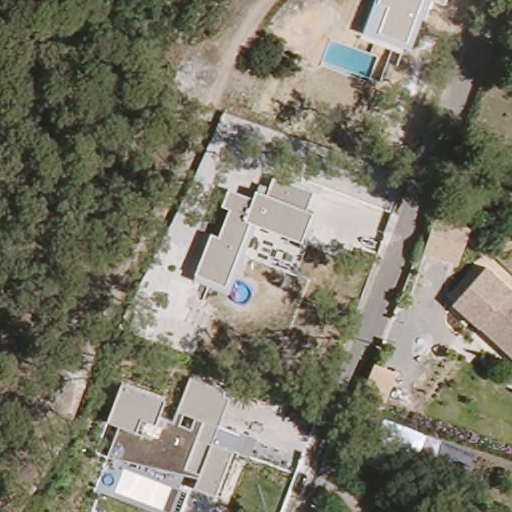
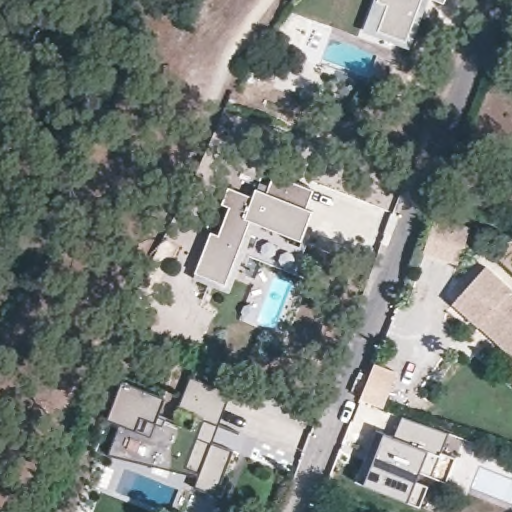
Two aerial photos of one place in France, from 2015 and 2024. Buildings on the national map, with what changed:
unchanged [(429,0),(410,50),(363,33),(375,0),(429,0)]
unchanged [(434,0),(446,0),(445,4),(434,0)]
unchanged [(211,233),(218,235),(229,209),(221,205),(228,188),(252,196),(254,189),(257,181),(269,187),(273,175),(314,189),(306,209),(312,212),(302,239),(256,223),(228,292),(194,276),(211,233)]
unchanged [(435,216),(471,227),(458,264),(423,253),(435,216)]
unchanged [(459,303),(490,267),(512,286),(512,345),(487,324),(485,326),(478,320),(459,303)]
unchanged [(374,364),(396,373),(381,409),(359,400),(369,375),(374,364)]
unchanged [(198,477),(109,454),(120,425),(107,419),(122,382),(165,396),(159,416),(172,422),(178,409),(191,377),(228,397),(212,443),(232,450),(217,496),(194,488),(198,477)]
new [(377,429),(393,436),(400,416),(447,433),(441,452),(454,457),(445,483),(421,474),(419,480),(431,484),(424,506),(358,482),(377,429)]
unchanged [(457,503),(472,512),(451,512),(457,503)]

